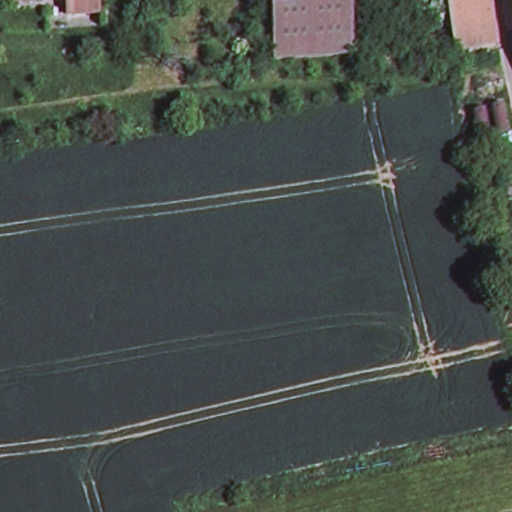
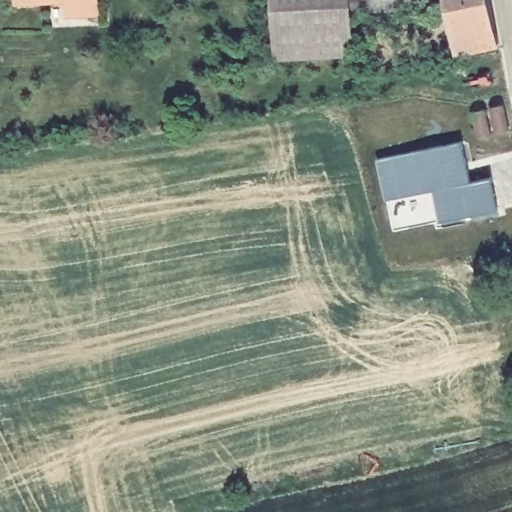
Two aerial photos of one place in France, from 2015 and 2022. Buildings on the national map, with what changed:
unchanged [(14,0),(59,0),(14,4),(14,0)]
unchanged [(67,15),(66,0),(96,0),(97,13),(67,15)]
unchanged [(265,0),(344,0),(344,11),(345,11),(347,56),(346,56),(267,60),(265,0)]
unchanged [(345,11),(344,11),(344,0),(440,0),(442,6),(345,11)]
unchanged [(440,0),(470,0),(442,6),(440,0)]
unchanged [(484,0),(492,45),(450,54),(442,6),(470,0),(484,0)]
unchanged [(509,0),(512,0),(512,16),(509,0)]
new [(470,180),(490,177),(496,211),(440,221),(434,190),(384,199),(377,159),(460,143),(470,180)]

